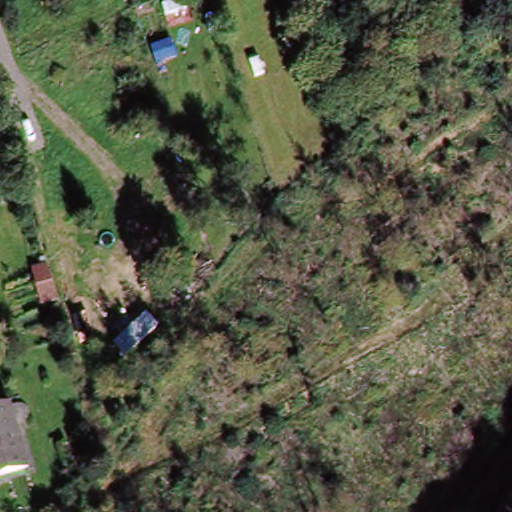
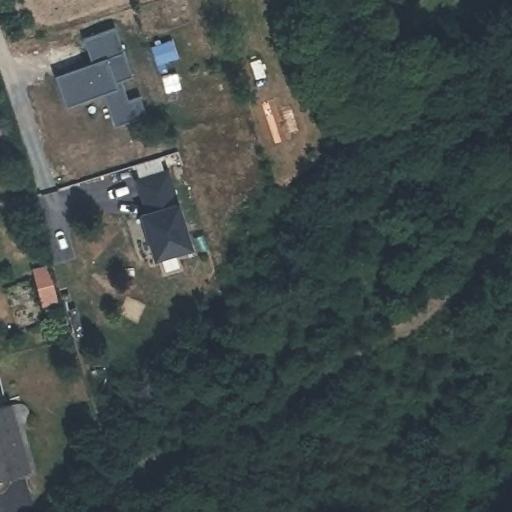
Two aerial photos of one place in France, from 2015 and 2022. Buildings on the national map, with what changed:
new [(130,75),(120,79),(135,120),(114,129),(99,94),(65,107),(54,76),(92,63),(81,39),(114,27),(130,75)]
new [(153,261),(141,217),(155,214),(151,200),(144,201),(139,182),(170,174),(189,252),(153,261)]
unchanged [(0,479),(0,409),(12,405),(31,470),(0,479)]

